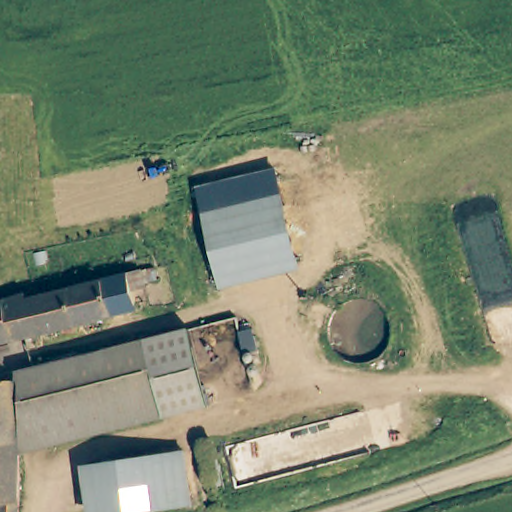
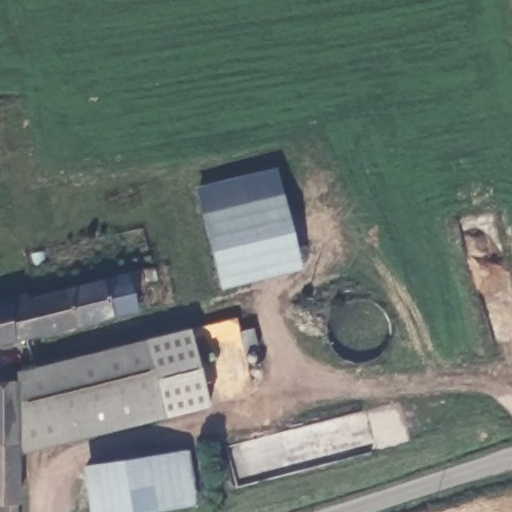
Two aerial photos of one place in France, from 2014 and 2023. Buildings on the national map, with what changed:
unchanged [(274,170),(296,255),(217,275),(194,190),(274,170)]
unchanged [(296,255),(300,270),(221,289),(217,275),(296,255)]
unchanged [(147,285),(137,286),(141,307),(9,340),(2,301),(34,292),(35,297),(141,271),(146,272),(147,285)]
unchanged [(9,340),(0,342),(0,301),(2,301),(9,340)]
unchanged [(187,332),(202,393),(205,407),(201,407),(159,417),(142,342),(187,332)]
unchanged [(15,452),(13,382),(13,372),(26,370),(38,368),(142,342),(159,417),(29,448),(15,452)]
unchanged [(16,512),(0,512),(0,382),(13,382),(15,452),(16,512)]
unchanged [(188,507),(152,512),(99,512),(92,467),(183,454),(188,507)]

